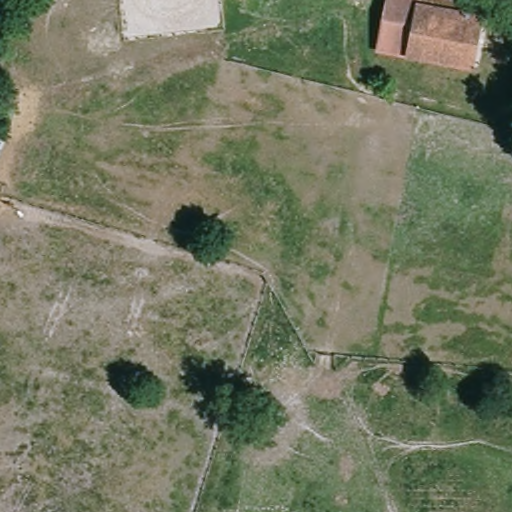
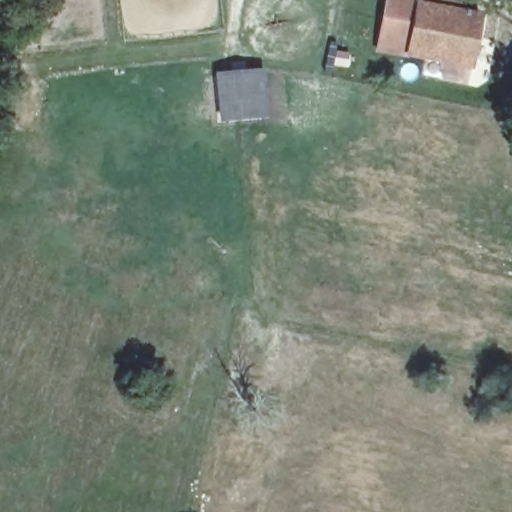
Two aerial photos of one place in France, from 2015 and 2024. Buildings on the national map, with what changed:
unchanged [(388,0),(426,0),(482,14),(470,66),(409,54),(377,46),(382,23),(388,0)]
new [(219,121),(215,72),(265,68),(269,116),(219,121)]
unchanged [(16,94),(0,150),(0,89),(16,94)]

